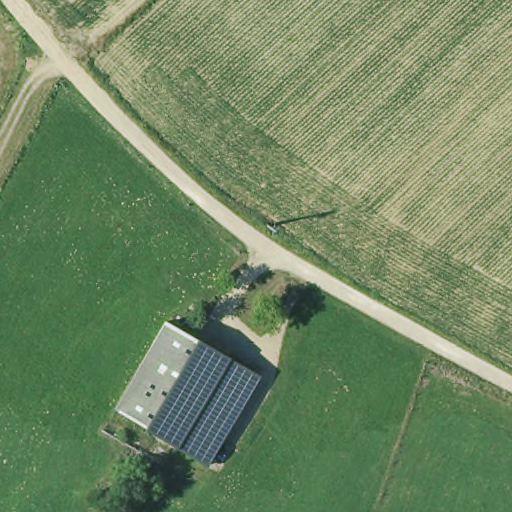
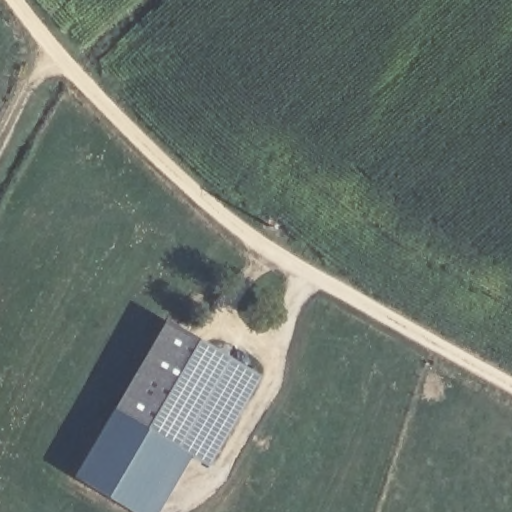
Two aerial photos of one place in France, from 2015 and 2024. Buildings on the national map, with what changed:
unchanged [(178,444),(116,408),(166,322),(228,358),(178,444)]
new [(260,376),(210,463),(194,455),(178,444),(228,358),(260,376)]
new [(178,444),(194,455),(162,512),(129,512),(74,479),(116,408),(178,444)]

